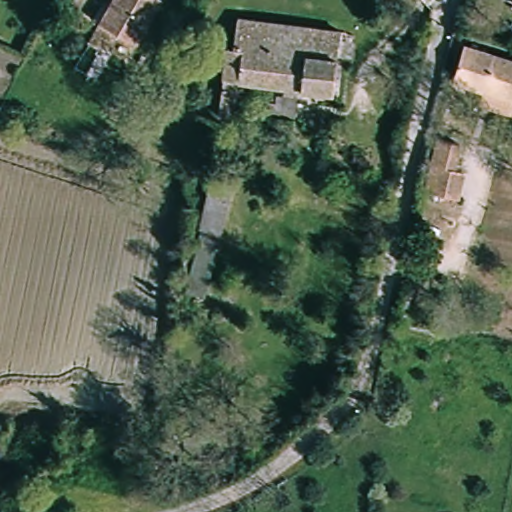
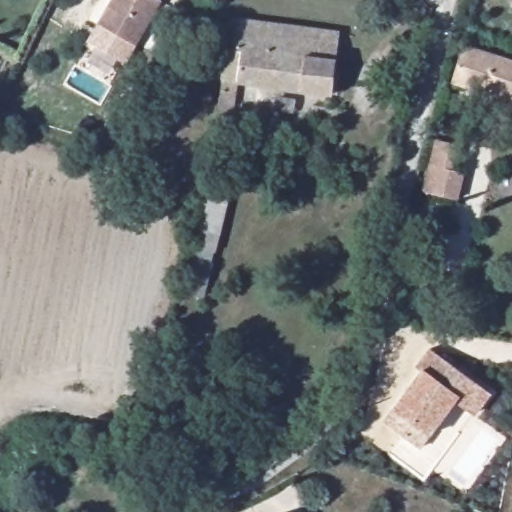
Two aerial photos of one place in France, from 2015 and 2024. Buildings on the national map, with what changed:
unchanged [(121,6),(112,1),(113,0),(154,0),(129,49),(105,36),(121,6)]
unchanged [(234,80),(236,64),(249,65),(251,53),(237,51),(241,18),(343,29),(333,91),(234,80)]
unchanged [(450,84),(463,44),(512,59),(512,106),(450,84)]
new [(251,53),(249,65),(236,64),(234,80),(233,119),(216,118),(218,79),(221,49),(237,51),(251,53)]
unchanged [(432,158),(466,165),(460,199),(422,193),(432,158)]
unchanged [(209,177),(235,184),(208,300),(185,294),(209,177)]
new [(384,424),(394,408),(423,369),(418,365),(431,351),(490,394),(474,416),(456,405),(430,436),(421,450),(384,424)]

